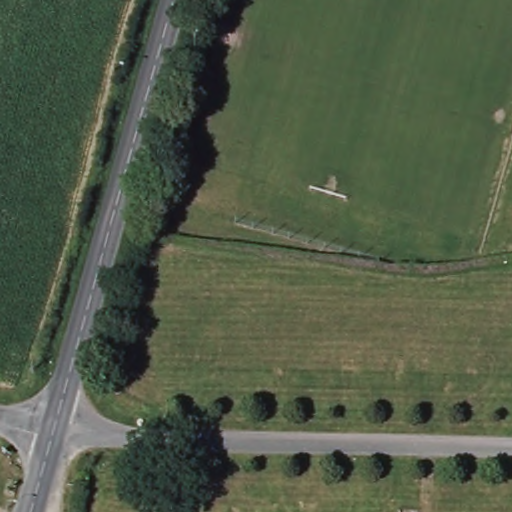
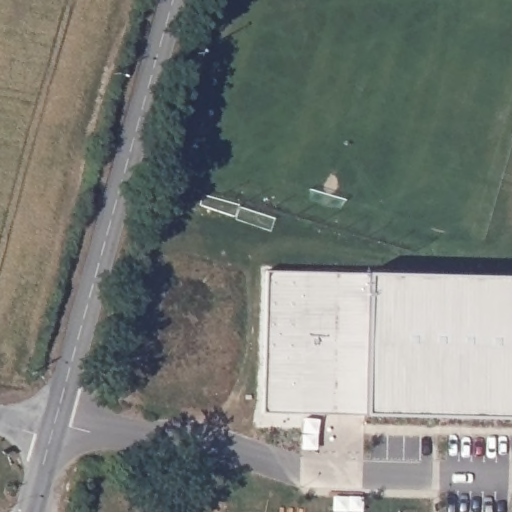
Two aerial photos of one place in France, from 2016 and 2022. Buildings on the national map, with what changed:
new [(265,410),(267,270),(369,273),(512,277),(512,418),(366,415),(265,410)]

